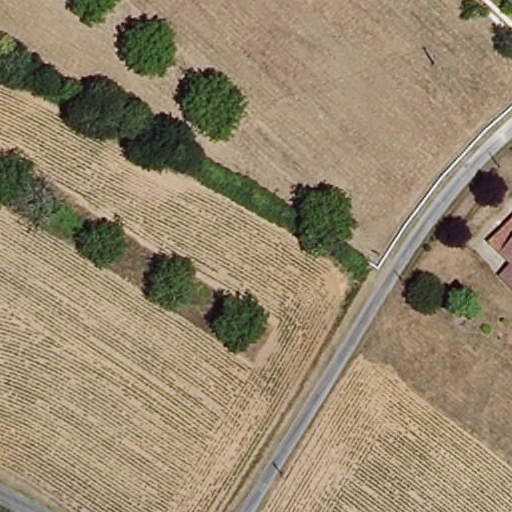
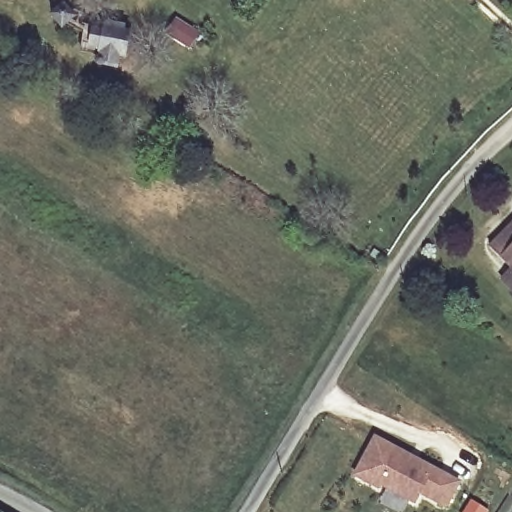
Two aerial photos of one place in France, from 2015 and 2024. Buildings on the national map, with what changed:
new [(94,24),(137,32),(133,55),(123,52),(121,62),(109,60),(110,50),(90,47),(94,24)]
unchanged [(495,240),(512,224),(512,259),(495,240)]
unchanged [(503,274),(512,265),(512,282),(503,274)]
new [(410,455),(423,462),(461,481),(449,505),(425,493),(420,503),(385,485),(383,489),(360,476),(378,440),(410,455)]

